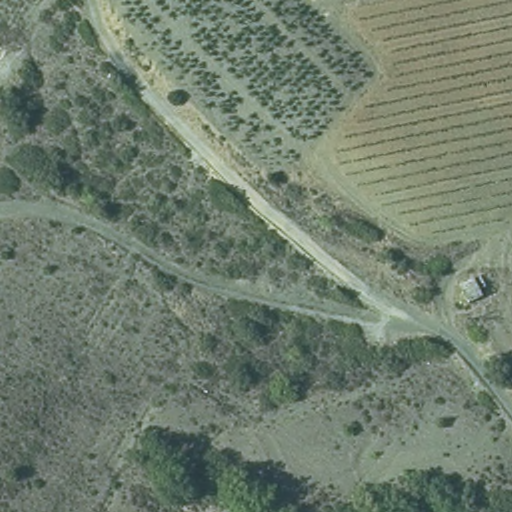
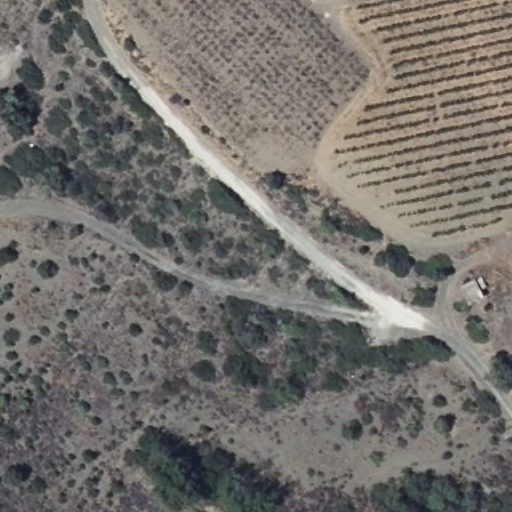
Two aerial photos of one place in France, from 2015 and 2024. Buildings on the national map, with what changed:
unchanged [(475,269),(485,290),(466,298),(459,277),(475,269)]

